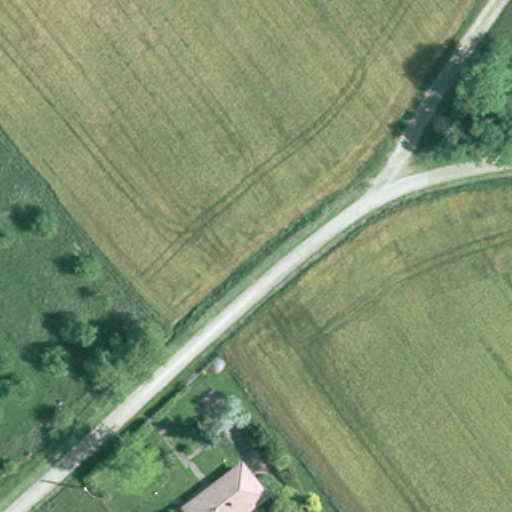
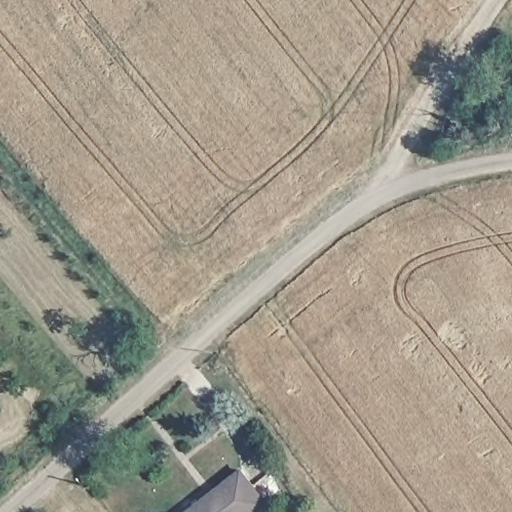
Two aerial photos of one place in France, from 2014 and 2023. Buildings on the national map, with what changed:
unchanged [(237,470),(261,501),(248,512),(183,512),(237,470)]

